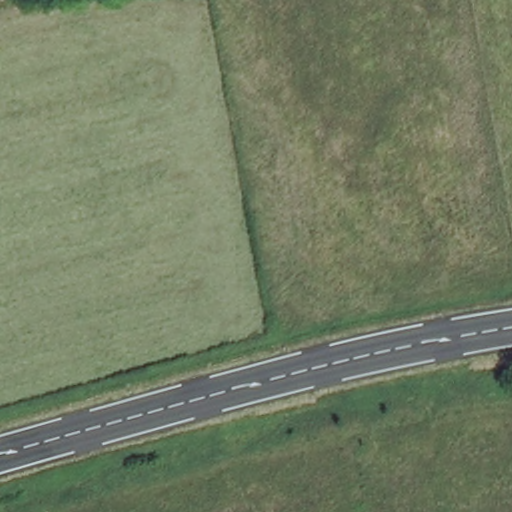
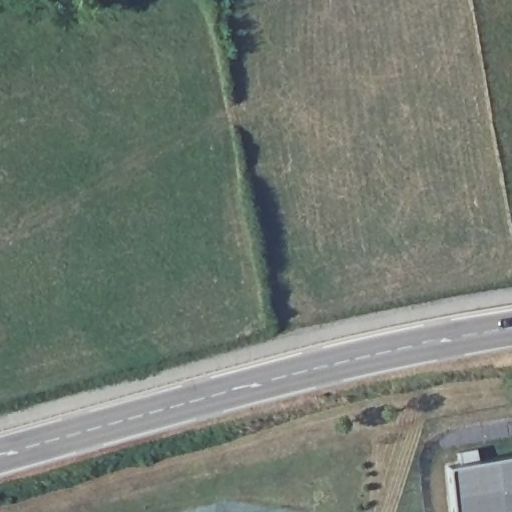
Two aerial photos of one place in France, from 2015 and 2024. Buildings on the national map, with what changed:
new [(512,456),(512,512),(452,512),(447,468),(512,456)]

